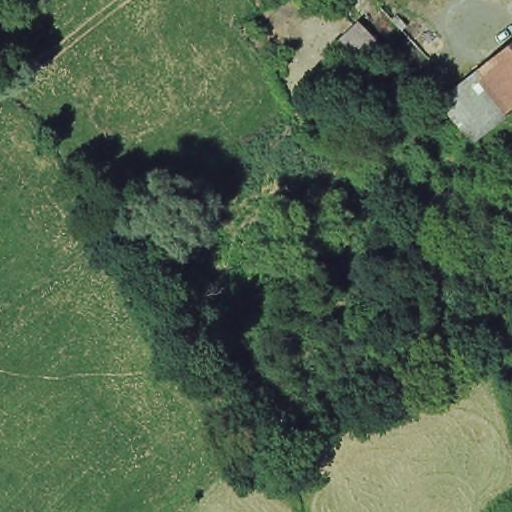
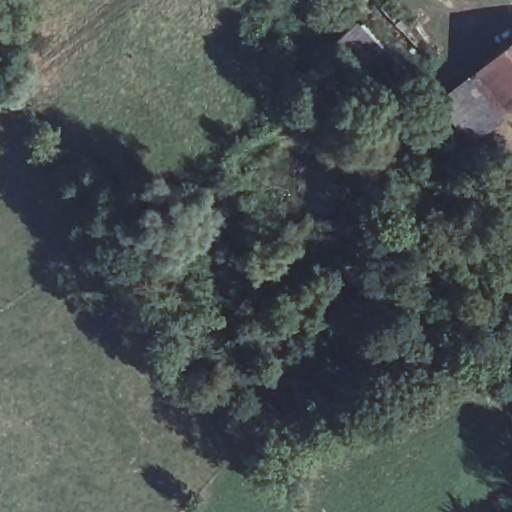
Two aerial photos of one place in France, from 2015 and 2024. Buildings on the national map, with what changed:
unchanged [(502,110),(471,136),(433,97),(478,61),(512,35),(512,97),(500,107),(502,110)]

